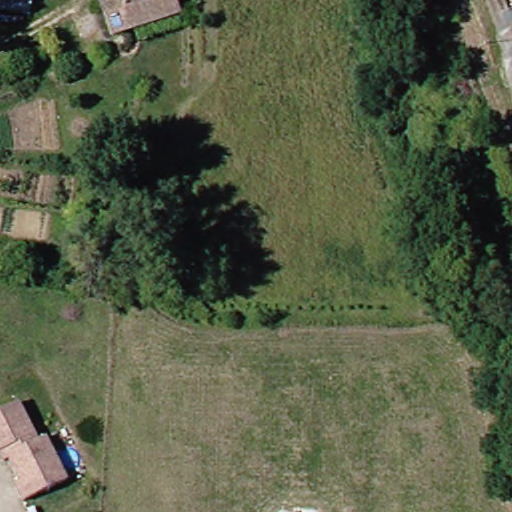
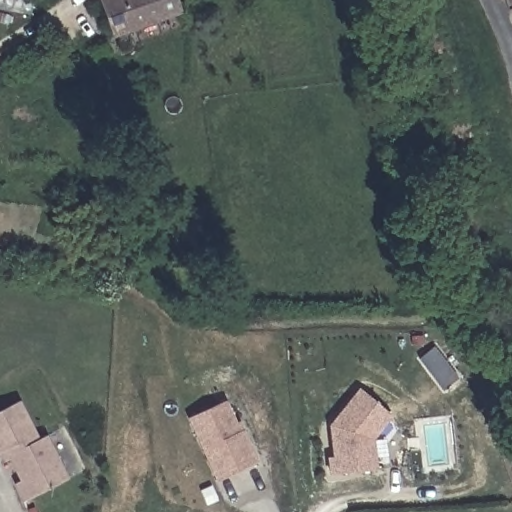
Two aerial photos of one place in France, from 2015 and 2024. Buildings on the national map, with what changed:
unchanged [(119,35),(106,2),(111,0),(177,0),(183,16),(119,35)]
new [(387,445),(388,465),(374,466),(373,438),(373,470),(329,472),(328,455),(333,455),(333,437),(333,425),(331,424),(364,388),(393,416),(389,420),(400,430),(387,445)]
new [(229,400),(241,432),(245,430),(257,463),(216,478),(192,414),(229,400)]
unchanged [(46,440),(55,438),(74,482),(30,502),(23,483),(27,482),(12,442),(2,445),(0,441),(0,416),(30,403),(46,440)]

